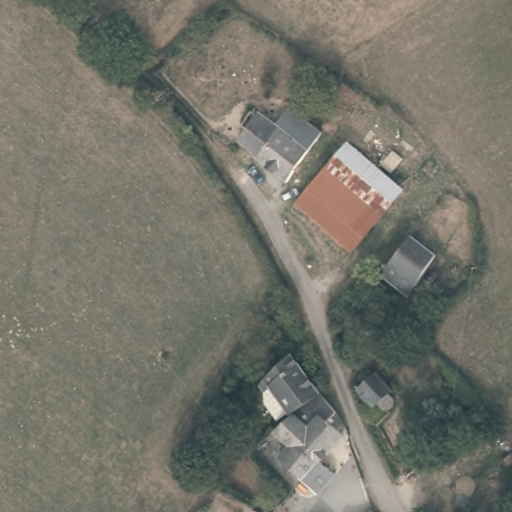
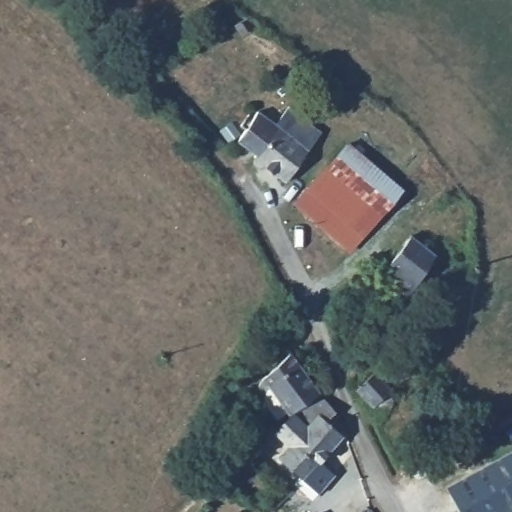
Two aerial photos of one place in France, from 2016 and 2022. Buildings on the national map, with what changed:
unchanged [(300,108),(328,131),(308,157),(284,189),(245,159),(248,156),(217,130),(228,113),(242,125),(252,112),(275,131),(297,105),(300,108)]
unchanged [(382,169),(408,191),(357,263),(290,211),(326,165),(346,139),(382,169)]
unchanged [(413,297),(392,281),(389,278),(378,270),(401,241),(407,246),(412,251),(432,266),(413,297)]
unchanged [(297,337),(285,342),(284,338),(286,334),(288,332),(291,331),(296,332),(297,337)]
unchanged [(263,407),(265,396),(270,392),(265,385),(273,377),(268,367),(288,356),(290,355),(318,393),(290,419),(288,417),(276,425),(263,407)]
unchanged [(358,415),(367,406),(346,381),(372,367),(400,397),(377,420),(366,427),(358,415)]
unchanged [(333,414),(326,422),(341,437),(302,484),(277,462),(287,451),(274,437),(290,419),(318,393),(333,414)]
unchanged [(431,462),(410,473),(405,466),(395,452),(413,437),(426,455),(431,462)]
new [(512,511),(510,512),(461,512),(447,486),(512,451),(512,511)]
demolished [(378,512),(366,512),(372,506),(378,512)]

